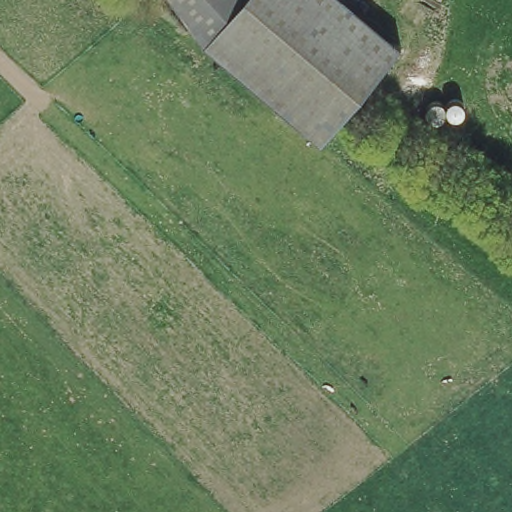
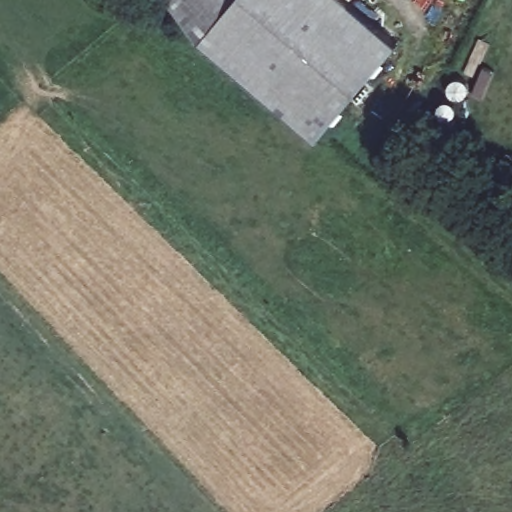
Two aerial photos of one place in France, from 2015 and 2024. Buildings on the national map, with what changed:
unchanged [(322,136),(270,92),(206,38),(176,0),(355,0),(403,40),(322,136)]

